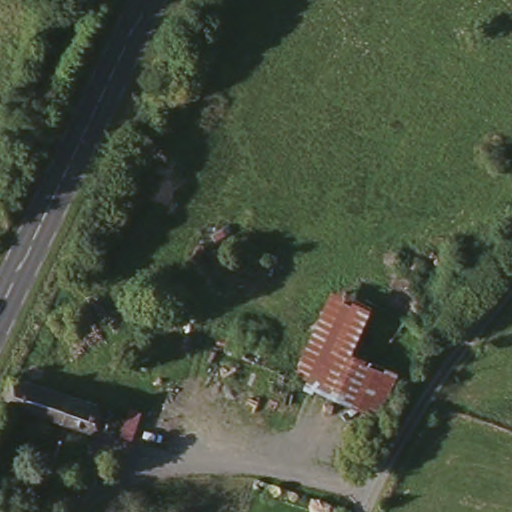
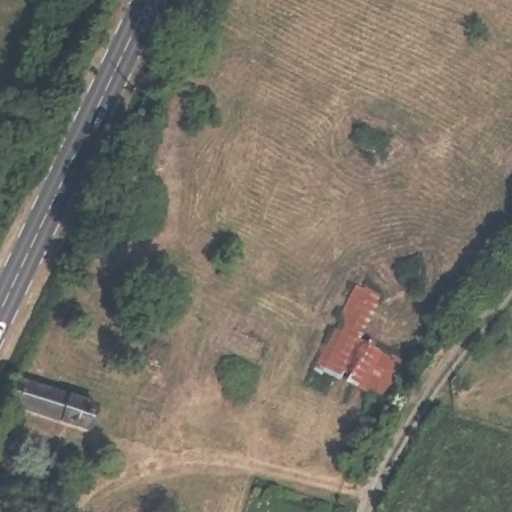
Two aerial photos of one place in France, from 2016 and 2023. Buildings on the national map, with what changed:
unchanged [(335,283),(353,290),(335,338),(316,329),(335,283)]
unchanged [(335,338),(397,365),(376,413),(295,378),(316,329),(335,338)]
unchanged [(244,336),(257,343),(249,360),(235,355),(244,336)]
unchanged [(15,374),(97,400),(91,425),(4,398),(15,374)]

